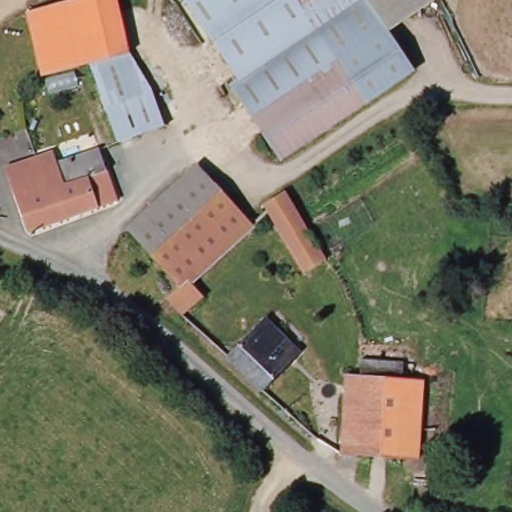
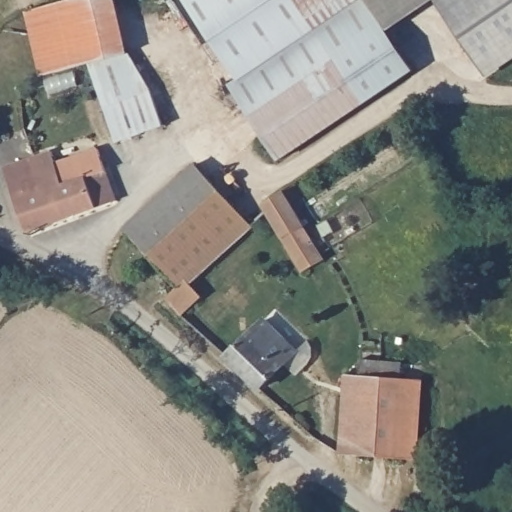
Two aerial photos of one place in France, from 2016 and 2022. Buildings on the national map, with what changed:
unchanged [(78,65),(42,73),(28,9),(63,0),(78,65)]
unchanged [(131,51),(91,62),(78,65),(63,0),(121,0),(131,51)]
unchanged [(303,9),(313,23),(237,74),(187,0),(316,0),(303,9)]
unchanged [(316,0),(369,0),(388,27),(415,67),(365,101),(315,27),(313,23),(303,9),(316,0)]
unchanged [(388,27),(369,0),(429,0),(388,27)]
new [(436,1),(437,0),(512,0),(512,61),(488,77),(436,1)]
unchanged [(281,157),(231,83),(315,27),(365,101),(281,157)]
unchanged [(154,90),(107,107),(91,62),(131,51),(154,90)]
unchanged [(165,122),(165,124),(119,140),(107,107),(154,90),(165,122)]
unchanged [(14,177),(9,162),(29,156),(57,147),(61,158),(103,144),(122,196),(32,229),(14,177)]
unchanged [(131,229),(167,196),(201,164),(258,226),(194,282),(207,297),(188,316),(171,298),(183,287),(131,229)]
unchanged [(325,260),(303,273),(265,210),(262,205),(284,192),(325,260)]
unchanged [(265,390),(233,358),(269,320),(302,352),(265,390)]
unchanged [(421,461),(346,455),(351,374),(364,375),(366,360),(408,362),(407,378),(427,380),(421,461)]

